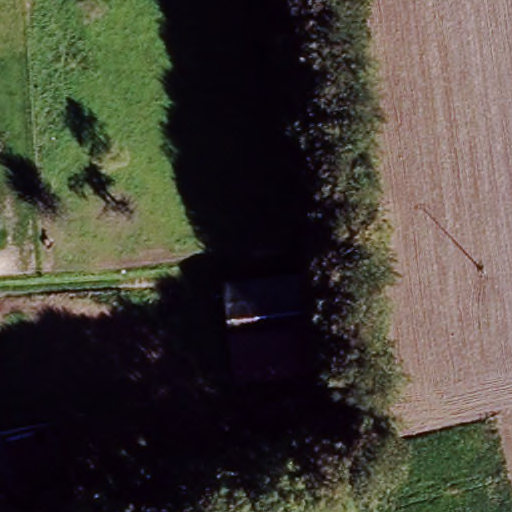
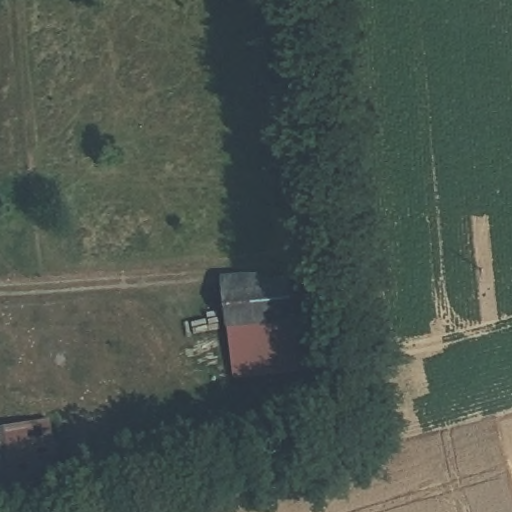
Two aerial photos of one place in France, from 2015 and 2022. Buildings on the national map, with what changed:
unchanged [(308,322),(225,335),(222,309),(220,293),(302,280),(305,296),(308,322)]
unchanged [(308,322),(315,370),(232,382),(225,335),(308,322)]
unchanged [(0,432),(41,421),(59,485),(20,494),(0,499),(0,432)]

